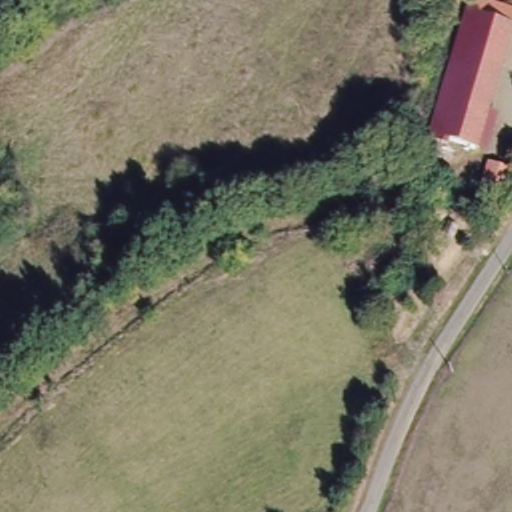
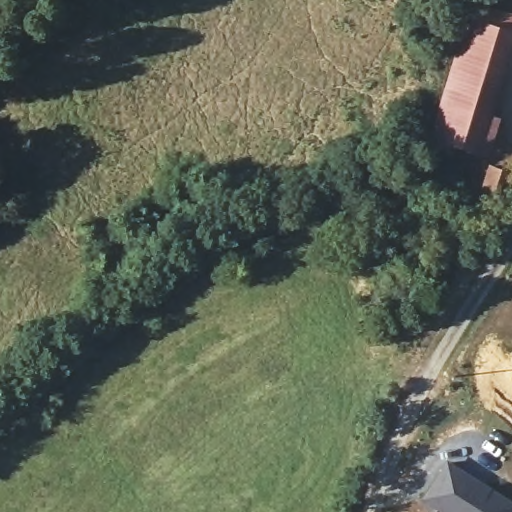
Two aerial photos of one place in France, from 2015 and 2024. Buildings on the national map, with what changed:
unchanged [(462,13),(507,27),(496,75),(452,61),(462,13)]
unchanged [(452,61),(496,75),(488,106),(442,91),(452,61)]
unchanged [(488,106),(481,127),(437,112),(442,91),(488,106)]
unchanged [(424,158),(428,144),(437,112),(481,127),(472,158),(444,150),(440,163),(424,158)]
unchanged [(507,179),(501,200),(486,194),(492,173),(507,179)]
new [(512,499),(512,512),(435,512),(435,511),(416,501),(444,456),(512,499)]

